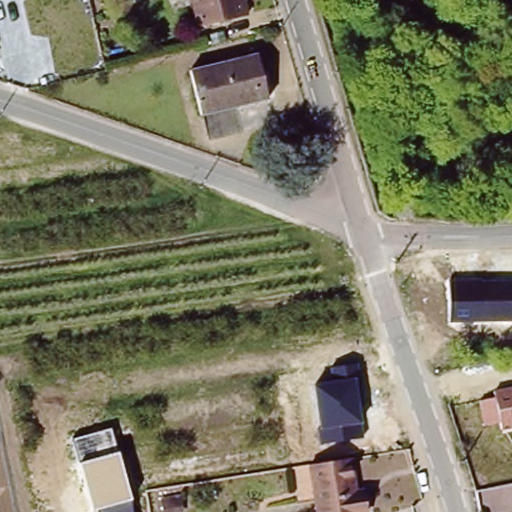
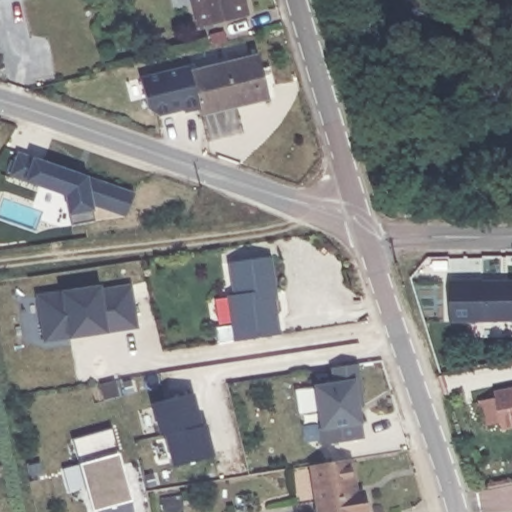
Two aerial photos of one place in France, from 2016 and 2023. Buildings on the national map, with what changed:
unchanged [(237,4),(243,2),(247,20),(199,31),(192,0),(236,0),(237,4)]
unchanged [(267,104),(199,119),(190,75),(257,60),(267,104)]
new [(197,109),(185,112),(185,109),(157,115),(148,109),(142,77),(188,64),(190,75),(197,109)]
new [(125,216),(92,201),(93,210),(95,220),(70,224),(68,214),(65,194),(25,181),(10,175),(18,151),(33,157),(89,176),(135,192),(125,216)]
unchanged [(428,216),(410,215),(410,199),(428,200),(428,216)]
new [(237,295),(232,263),(275,257),(280,292),(277,293),(283,335),(237,342),(230,296),(237,295)]
unchanged [(512,278),(512,322),(450,323),(447,280),(512,278)]
new [(137,328),(105,332),(69,337),(43,341),(37,293),(62,290),(101,286),(132,283),(137,328)]
unchanged [(312,384),(332,381),(329,367),(359,362),(366,402),(360,402),(365,437),(320,446),(312,384)]
unchanged [(512,430),(501,432),(500,423),(483,426),(478,401),(495,397),(493,390),(512,387),(512,430)]
new [(172,465),(165,432),(159,433),(152,403),(193,393),(202,425),(207,423),(213,455),(172,465)]
unchanged [(92,511),(72,440),(112,428),(134,512),(98,512),(97,510),(92,511)]
unchanged [(359,496),(367,495),(369,512),(320,512),(313,470),(353,463),(359,496)]
unchanged [(194,503),(196,512),(177,512),(176,506),(194,503)]

